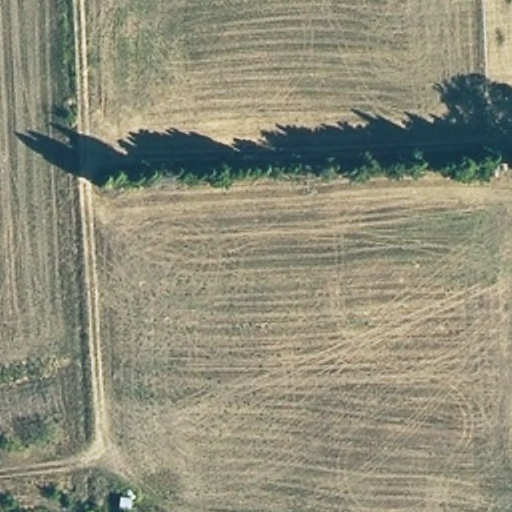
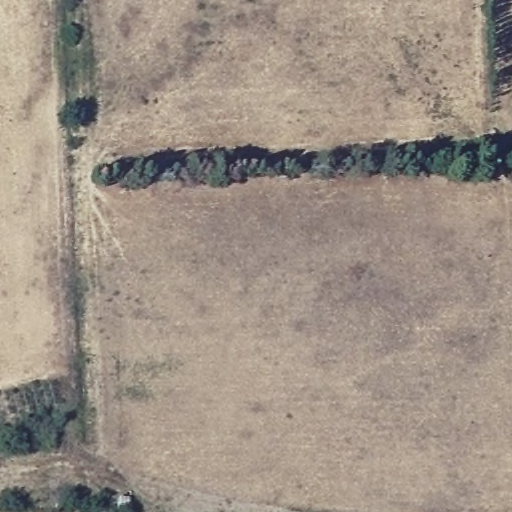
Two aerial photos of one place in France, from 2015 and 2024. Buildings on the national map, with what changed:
unchanged [(117,502),(130,502),(130,512),(116,512),(117,502)]

